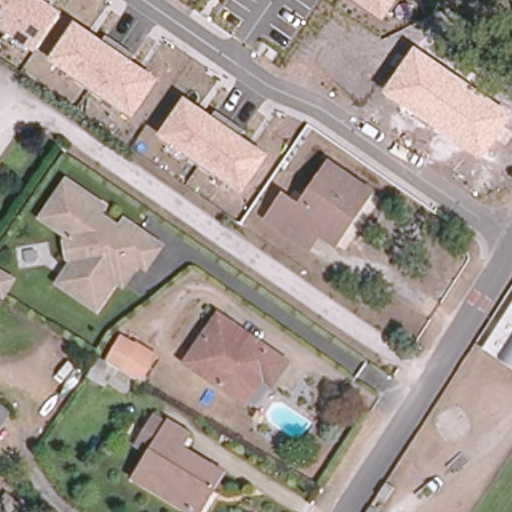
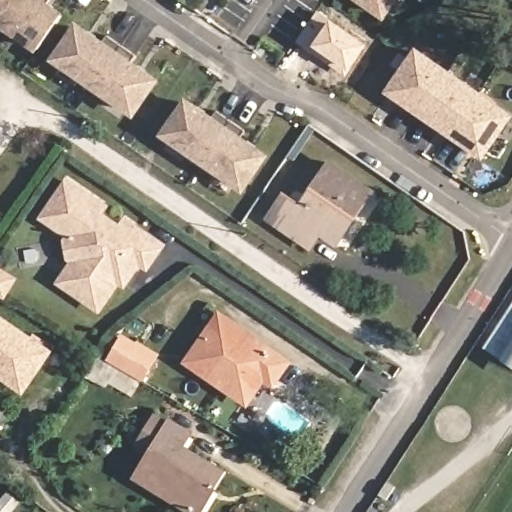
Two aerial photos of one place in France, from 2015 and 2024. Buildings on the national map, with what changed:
unchanged [(0,30),(0,0),(44,0),(61,11),(32,52),(0,30)]
unchanged [(383,20),(353,0),(397,0),(383,20)]
new [(317,10),(331,19),(368,45),(350,70),(346,76),(297,42),(317,10)]
unchanged [(132,118),(47,59),(75,21),(159,79),(132,118)]
unchanged [(483,158),(385,90),(416,46),(512,114),(512,117),(483,158)]
unchanged [(241,192),(159,136),(185,97),(268,154),(241,192)]
unchanged [(335,244),(320,233),(309,248),(266,219),(282,195),(300,206),(329,163),(371,191),(335,244)]
unchanged [(145,273),(139,269),(125,291),(116,287),(99,316),(52,285),(63,264),(60,238),(35,221),(64,177),(164,244),(145,273)]
unchanged [(0,300),(0,271),(16,280),(2,301),(0,300)]
unchanged [(501,360),(486,350),(512,311),(512,367),(501,360)]
new [(22,396),(0,381),(0,315),(53,351),(22,396)]
unchanged [(214,316),(282,363),(267,386),(257,378),(239,403),(181,362),(214,316)]
unchanged [(107,364),(121,340),(135,348),(137,346),(155,357),(140,383),(107,364)]
unchanged [(0,424),(0,410),(7,415),(0,424)]
unchanged [(188,435),(180,448),(222,473),(199,512),(190,512),(135,478),(170,422),(188,435)]
unchanged [(15,503),(8,512),(0,512),(0,497),(2,493),(15,503)]

